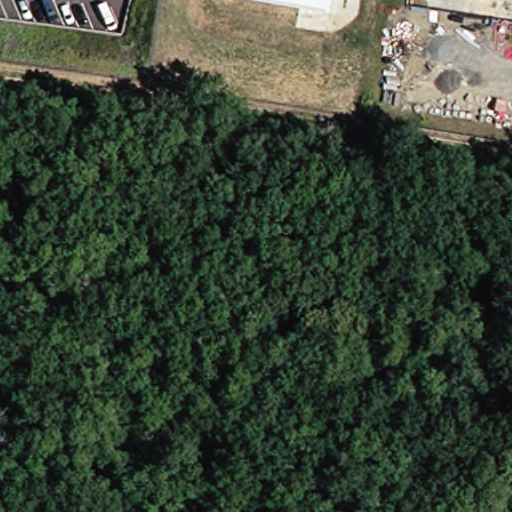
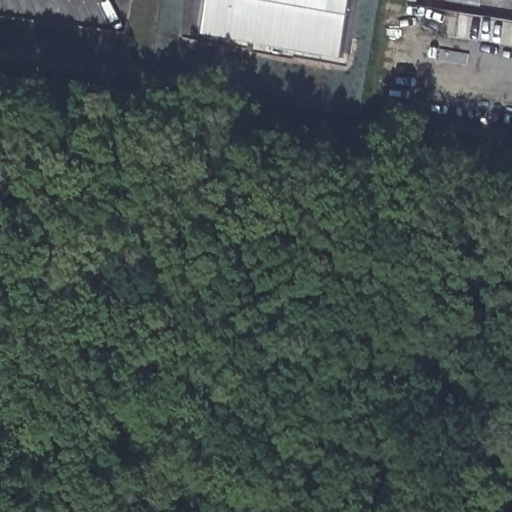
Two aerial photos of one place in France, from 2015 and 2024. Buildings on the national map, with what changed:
new [(204,34),(210,0),(350,0),(340,59),(204,34)]
demolished [(256,0),(331,0),(329,13),(256,0)]

